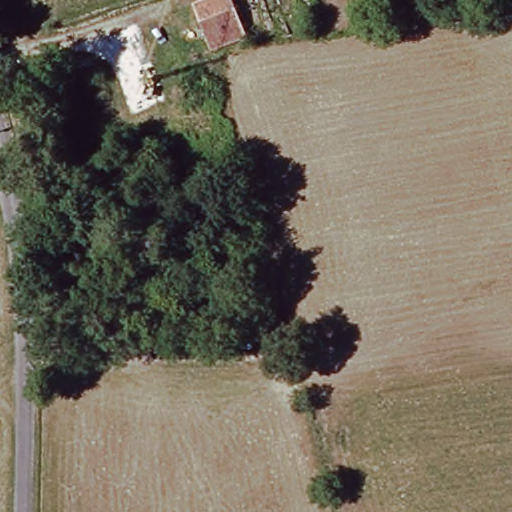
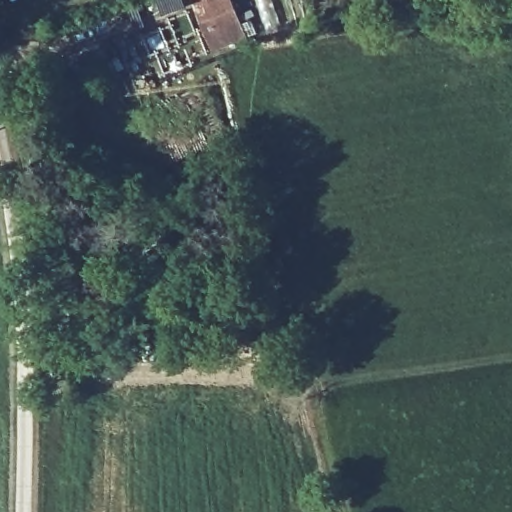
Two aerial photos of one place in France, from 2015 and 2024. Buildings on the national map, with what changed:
unchanged [(209,50),(193,7),(212,0),(232,0),(245,37),(209,50)]

